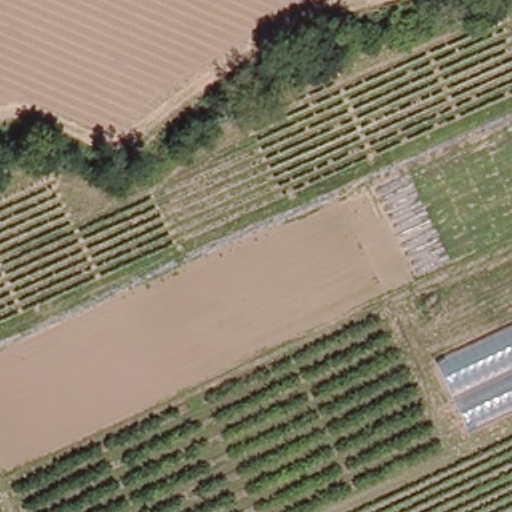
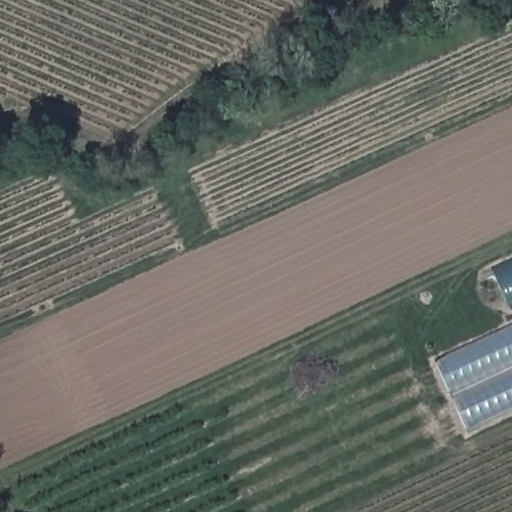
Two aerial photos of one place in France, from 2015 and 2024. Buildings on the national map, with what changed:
new [(493,268),(512,259),(512,307),(510,307),(493,268)]
unchanged [(469,432),(435,362),(512,327),(512,412),(469,432)]

